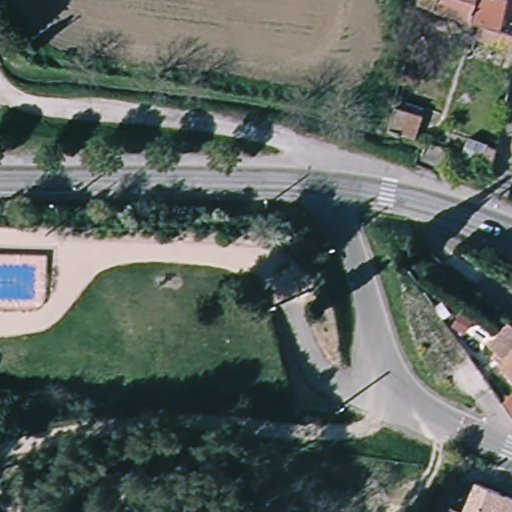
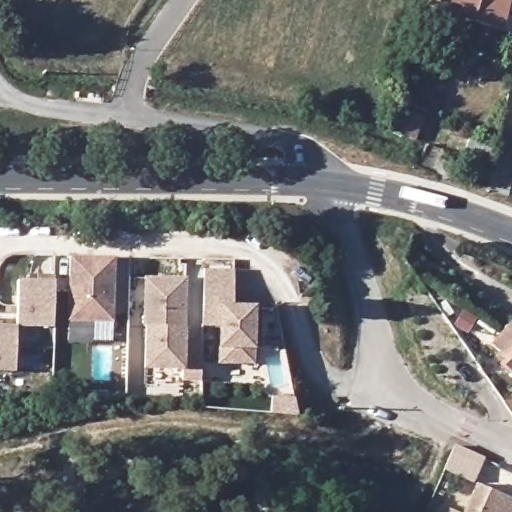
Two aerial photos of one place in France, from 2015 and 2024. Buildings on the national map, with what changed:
unchanged [(421,7),(423,0),(480,0),(474,26),(421,7)]
unchanged [(512,39),(474,26),(480,0),(505,0),(512,2),(512,39)]
new [(66,253),(110,255),(108,318),(63,317),(66,253)]
new [(203,268),(233,269),(232,305),(254,306),(252,363),(218,362),(219,324),(201,323),(203,268)]
new [(146,275),(186,276),(184,337),(202,337),(201,377),(182,377),(182,366),(145,365),(146,323),(144,323),(146,275)]
new [(54,281),(52,328),(16,327),(15,372),(0,372),(0,324),(15,324),(17,280),(54,281)]
unchanged [(512,512),(481,512),(491,487),(512,496),(512,512)]
unchanged [(465,511),(469,512),(464,512),(465,511)]

